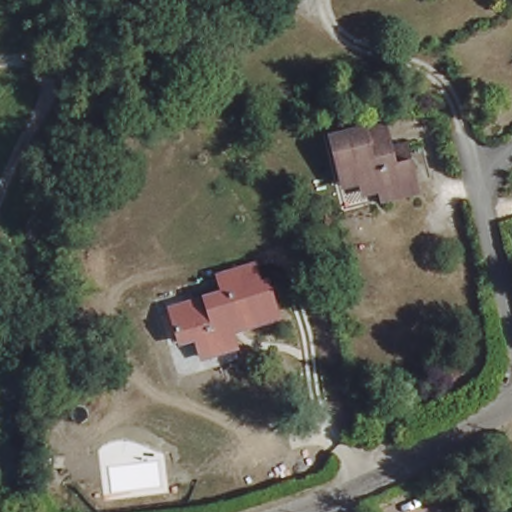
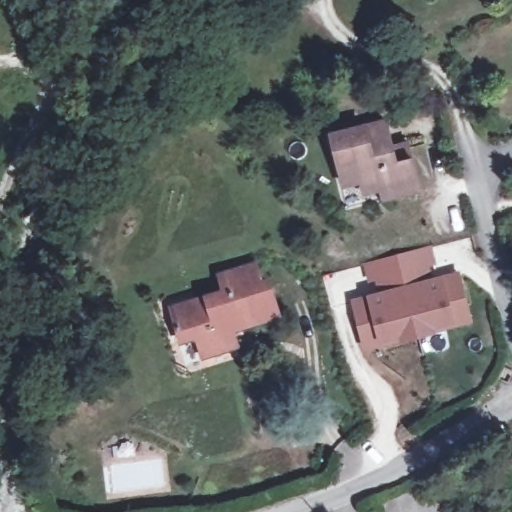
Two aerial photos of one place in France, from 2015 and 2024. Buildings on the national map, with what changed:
unchanged [(381,185),(380,180),(363,184),(361,177),(344,182),(339,162),(332,136),(366,127),(365,124),(387,117),(394,147),(397,146),(409,143),(412,154),(417,176),(420,186),(384,196),(381,185)]
new [(383,295),(379,279),(372,281),(367,265),(399,256),(430,248),(434,265),(427,267),(431,282),(460,275),(469,306),(471,317),(455,321),(418,331),(381,341),(365,345),(362,334),(354,302),(383,295)]
unchanged [(263,283),(270,281),(280,312),(246,322),(245,318),(231,322),(237,342),(206,352),(200,332),(186,337),(183,329),(180,330),(177,322),(180,321),(176,310),(197,303),(195,298),(227,288),(222,271),(256,261),(263,283)]

